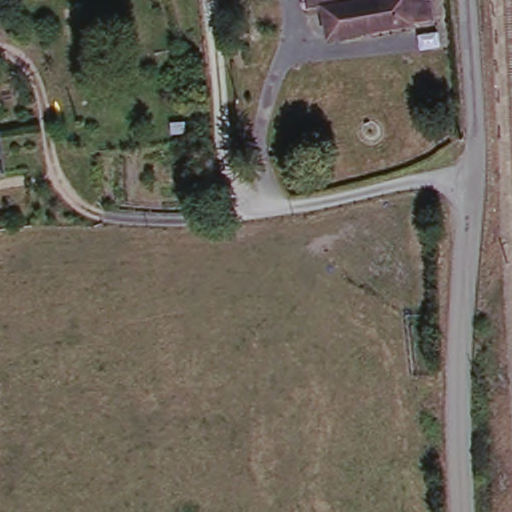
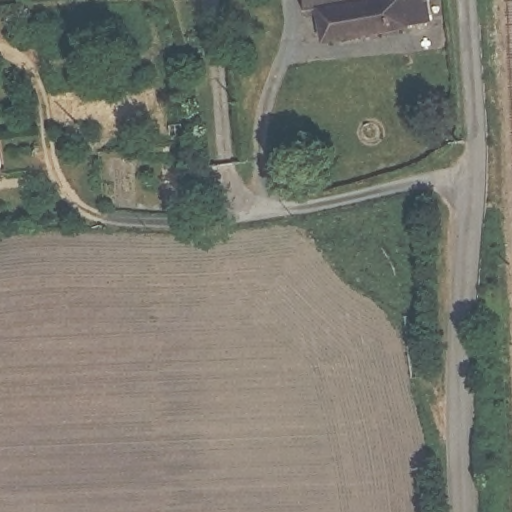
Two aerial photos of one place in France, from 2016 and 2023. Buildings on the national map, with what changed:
unchanged [(409,20),(402,25),(327,39),(321,11),(309,12),(307,0),(428,0),(432,15),(409,20)]

